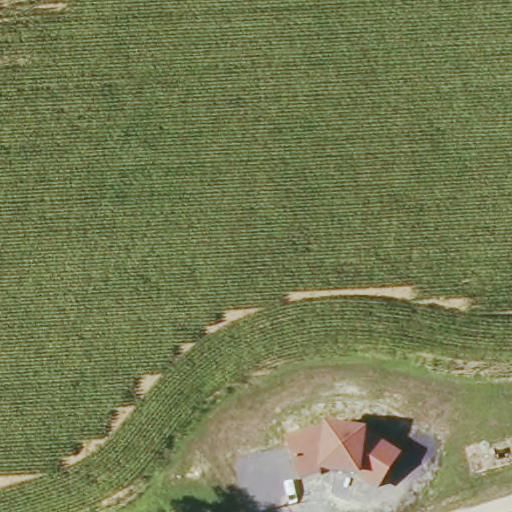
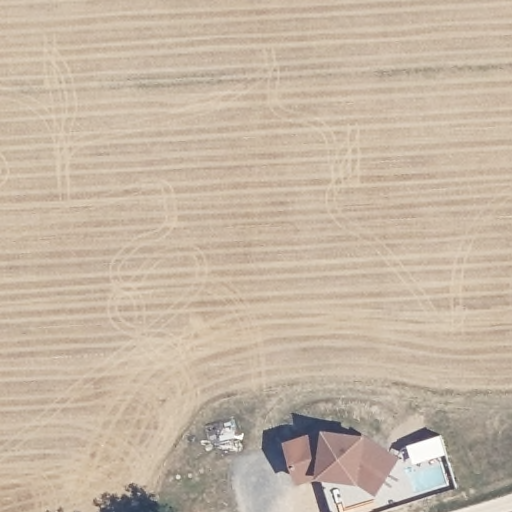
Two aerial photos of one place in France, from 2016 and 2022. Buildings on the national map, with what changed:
unchanged [(361,431),(400,457),(376,494),(360,482),(318,479),(300,483),(283,441),(323,428),(361,431)]

